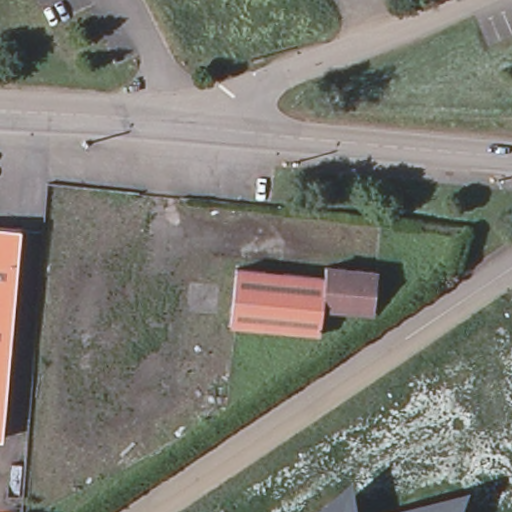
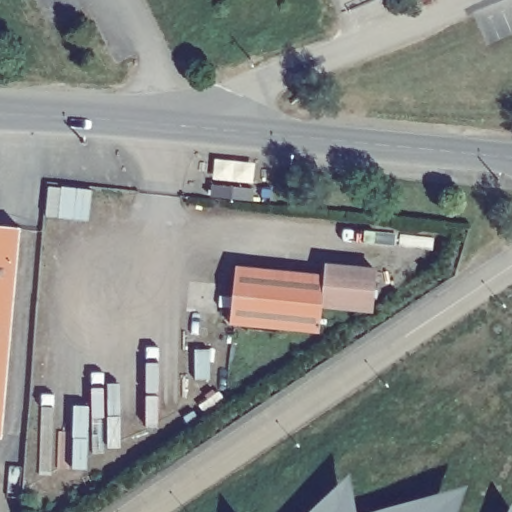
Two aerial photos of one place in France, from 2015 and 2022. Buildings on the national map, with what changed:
unchanged [(2,444),(0,444),(0,231),(22,233),(2,444)]
unchanged [(227,323),(234,266),(317,275),(318,266),(332,268),(370,273),(366,312),(328,308),(315,307),(312,332),(227,323)]
unchanged [(349,476),(354,512),(309,512),(349,476)]
unchanged [(467,488),(459,512),(363,512),(467,488)]
unchanged [(510,503),(512,507),(512,512),(506,512),(510,503)]

